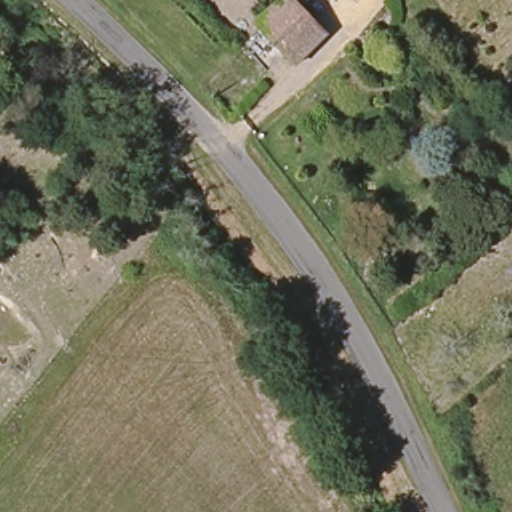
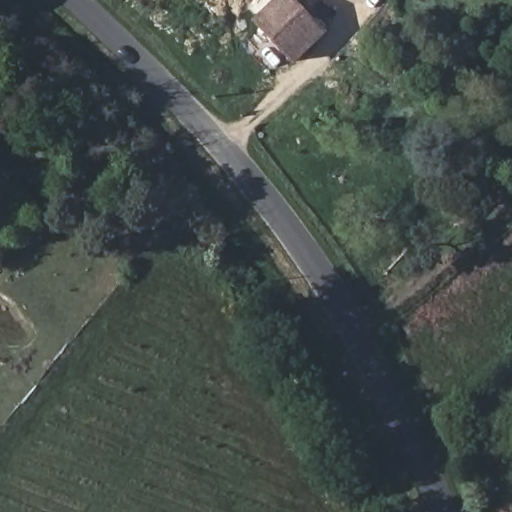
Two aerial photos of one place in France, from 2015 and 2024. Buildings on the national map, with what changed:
unchanged [(261,19),(280,0),(294,0),(327,33),(300,60),(261,19)]
unchanged [(337,0),(342,0),(340,2),(337,0)]

